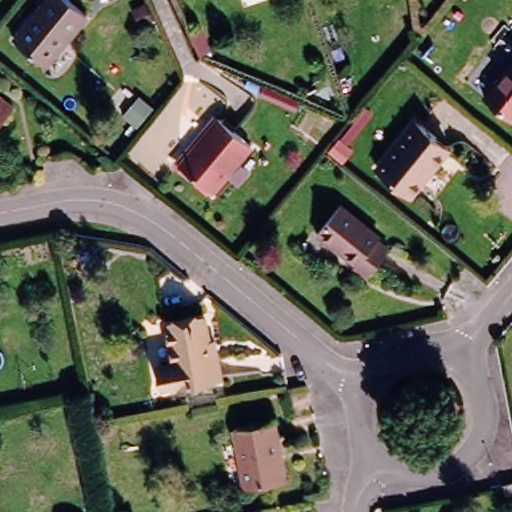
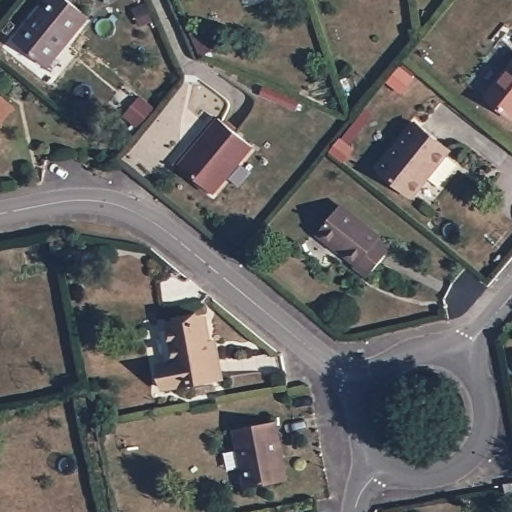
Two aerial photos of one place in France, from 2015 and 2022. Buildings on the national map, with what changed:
unchanged [(36,0),(62,0),(80,15),(40,62),(7,35),(36,0)]
unchanged [(512,109),(507,115),(480,94),(512,53),(512,109)]
unchanged [(10,108),(0,120),(0,100),(10,108)]
unchanged [(210,115),(244,143),(205,189),(172,162),(210,115)]
unchanged [(406,118),(441,147),(406,193),(370,165),(406,118)]
unchanged [(342,211),(392,253),(365,285),(353,274),(355,271),(331,250),(328,253),(315,243),(342,211)]
unchanged [(146,368),(166,364),(159,326),(191,318),(195,342),(201,341),(207,377),(151,387),(146,368)]
unchanged [(230,426),(272,418),(282,475),(241,483),(230,426)]

